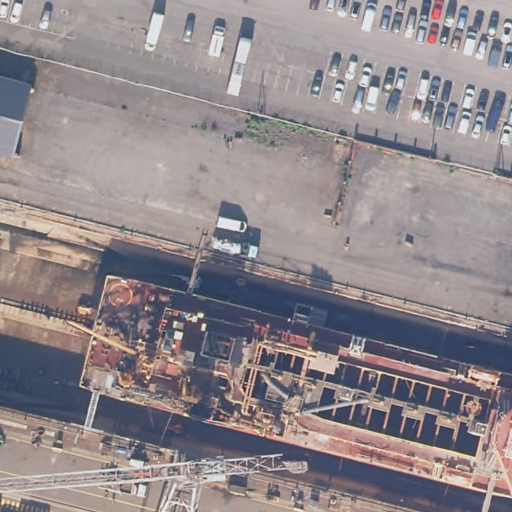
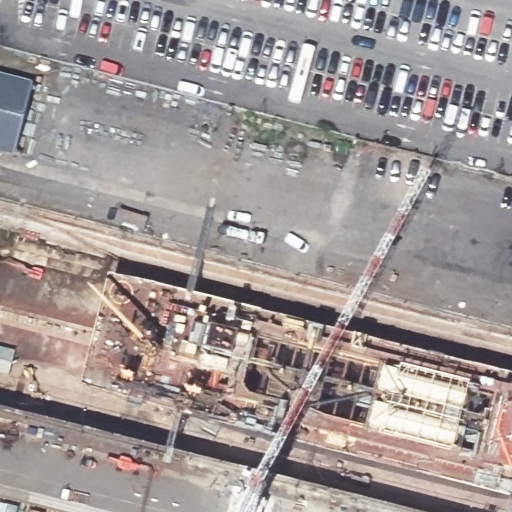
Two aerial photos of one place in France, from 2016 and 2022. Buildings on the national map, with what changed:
unchanged [(27,123),(18,158),(0,153),(0,79),(37,89),(27,123)]

